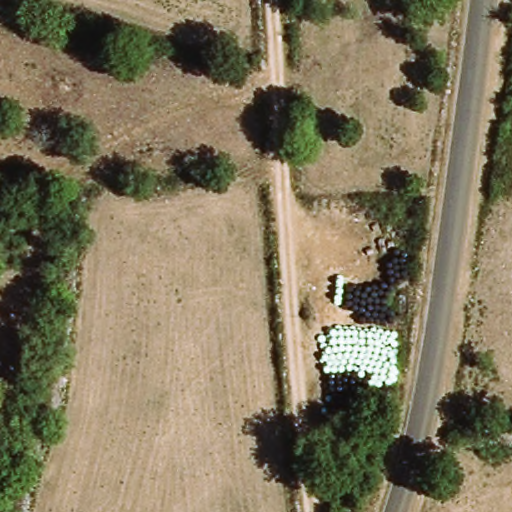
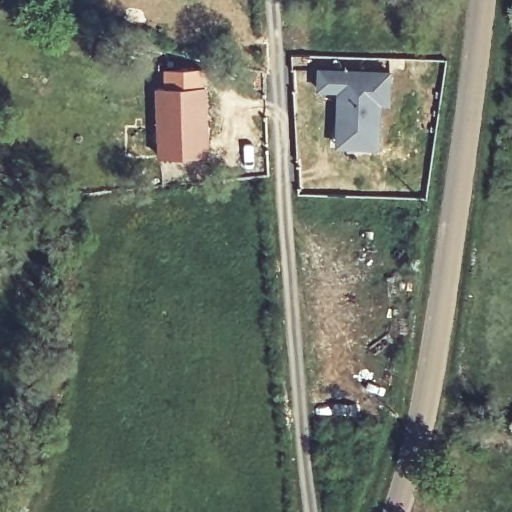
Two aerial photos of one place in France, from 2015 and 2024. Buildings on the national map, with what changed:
new [(200,151),(165,153),(160,85),(170,84),(169,69),(206,66),(207,82),(209,82),(212,140),(212,150),(200,151)]
new [(343,86),(322,86),(323,67),(394,69),(393,99),(384,99),(383,144),(352,143),(342,143),(342,123),(343,86)]

